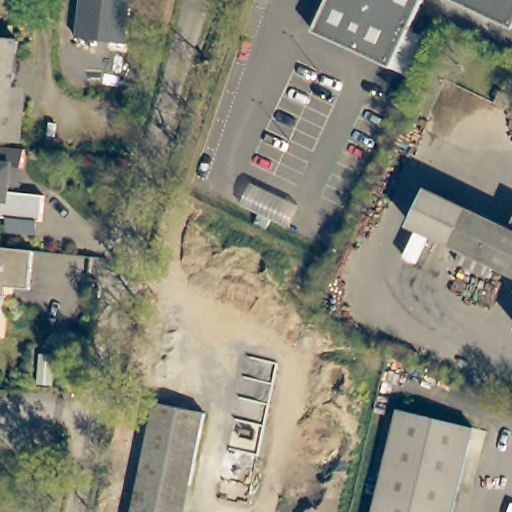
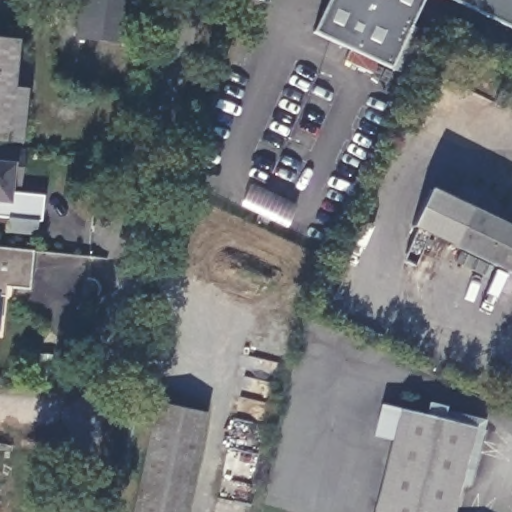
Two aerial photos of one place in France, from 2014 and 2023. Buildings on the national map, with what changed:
unchanged [(78,0),(125,0),(120,50),(85,45),(73,44),(78,0)]
unchanged [(415,21),(390,77),(310,41),(329,0),(425,0),(415,21)]
unchanged [(512,39),(428,0),(512,0),(512,39)]
unchanged [(23,41),(15,119),(0,116),(0,38),(23,41)]
unchanged [(15,119),(13,143),(0,141),(0,116),(15,119)]
unchanged [(6,237),(9,225),(0,223),(0,152),(25,155),(21,174),(20,190),(10,189),(8,198),(43,203),(40,229),(35,227),(32,242),(6,237)]
unchanged [(442,243),(415,231),(432,195),(458,207),(442,243)]
unchanged [(458,207),(512,231),(512,275),(442,243),(458,207)]
unchanged [(270,230),(265,240),(254,235),(258,225),(270,230)]
unchanged [(39,260),(34,294),(1,289),(0,297),(0,255),(39,260)]
unchanged [(6,310),(1,336),(0,336),(0,300),(6,310)]
unchanged [(53,401),(38,400),(40,371),(55,372),(53,401)]
unchanged [(202,413),(184,512),(133,512),(151,405),(202,413)]
unchanged [(451,512),(373,512),(396,408),(470,427),(451,512)]

